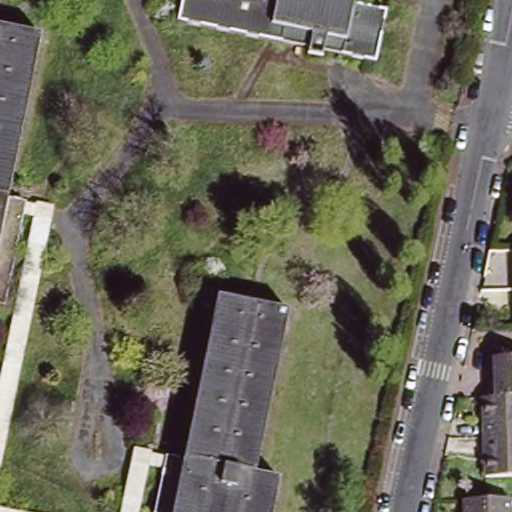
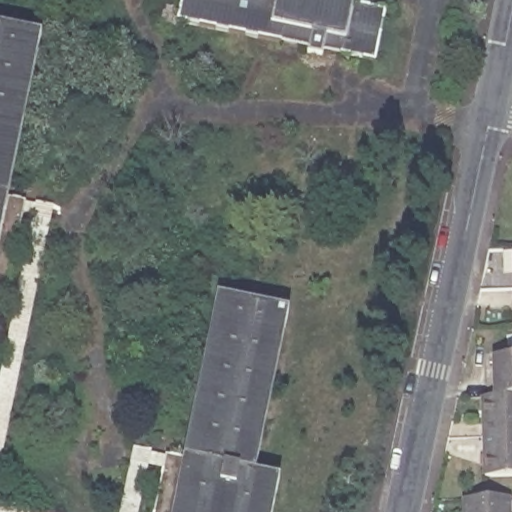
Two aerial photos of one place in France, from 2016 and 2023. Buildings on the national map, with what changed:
unchanged [(387,13),(377,64),(179,23),(184,0),(355,0),(354,6),(387,13)]
unchanged [(9,197),(27,201),(5,306),(0,305),(0,27),(42,36),(9,197)]
unchanged [(290,312),(257,474),(280,479),(274,512),(155,512),(167,456),(185,460),(220,297),(290,312)]
unchanged [(496,388),(495,360),(512,359),(512,398),(496,398),(496,388)]
unchanged [(512,398),(512,438),(486,438),(485,399),(496,398),(512,398)]
unchanged [(512,438),(512,477),(487,477),(486,438),(512,438)]
unchanged [(466,503),(512,501),(512,512),(466,512),(466,503)]

